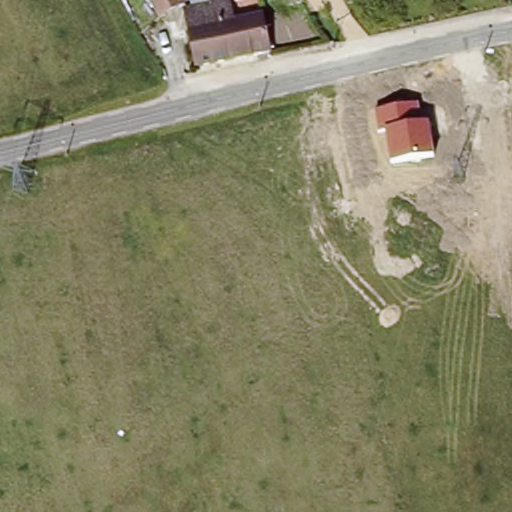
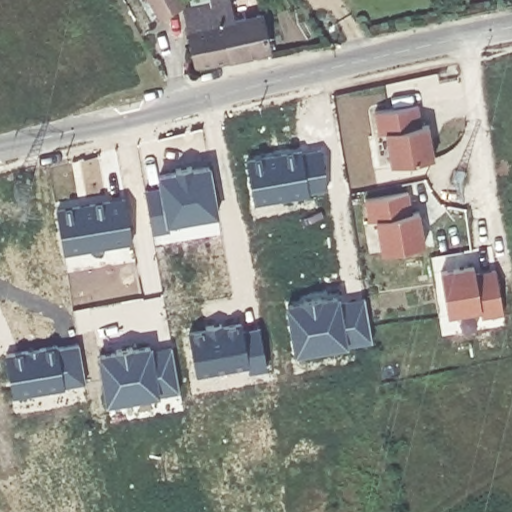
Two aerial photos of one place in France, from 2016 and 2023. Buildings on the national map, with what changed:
unchanged [(162,21),(149,0),(180,0),(185,6),(162,21)]
unchanged [(263,13),(272,54),(198,70),(186,11),(213,5),(212,0),(231,0),(235,18),(263,13)]
unchanged [(389,131),(377,133),(374,112),(418,105),(421,122),(430,121),(435,158),(394,162),(389,131)]
new [(328,184),(309,188),(309,190),(254,200),(247,157),(302,147),(302,150),(321,146),(328,184)]
new [(161,184),(159,172),(176,169),(175,166),(191,163),(192,166),(209,163),(217,211),(168,220),(169,226),(151,229),(144,187),(161,184)]
new [(413,212),(420,211),(424,244),(381,250),(375,218),(368,219),(364,199),(409,192),(413,212)]
new [(79,203),(80,205),(89,204),(89,201),(125,195),(132,238),(63,250),(56,207),(79,203)]
new [(504,313),(481,316),(479,309),(448,314),(440,270),(474,265),(476,270),(495,268),(504,313)]
new [(287,302),(304,299),(303,297),(320,295),(321,297),(337,294),(339,300),(367,295),(373,337),(295,350),(287,302)]
new [(205,327),(205,324),(221,321),(221,324),(241,321),(243,328),(260,325),(267,365),(249,368),(248,362),(195,371),(188,330),(205,327)]
new [(56,342),(57,344),(78,340),(85,379),(63,383),(63,385),(12,394),(5,351),(56,342)]
new [(116,349),(116,346),(131,343),(132,346),(149,343),(150,348),(171,344),(179,387),(107,400),(99,352),(116,349)]

